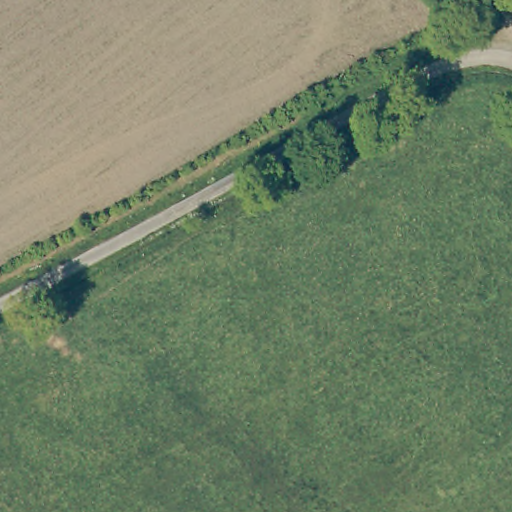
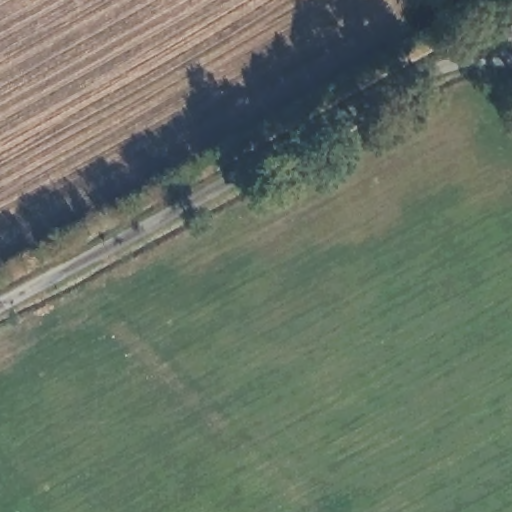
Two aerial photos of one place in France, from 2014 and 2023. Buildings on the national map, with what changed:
[]

